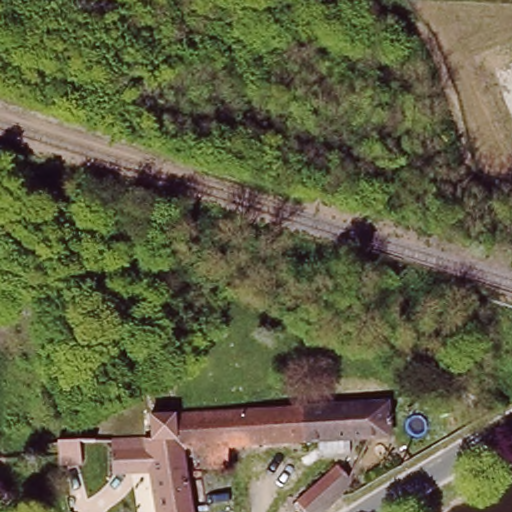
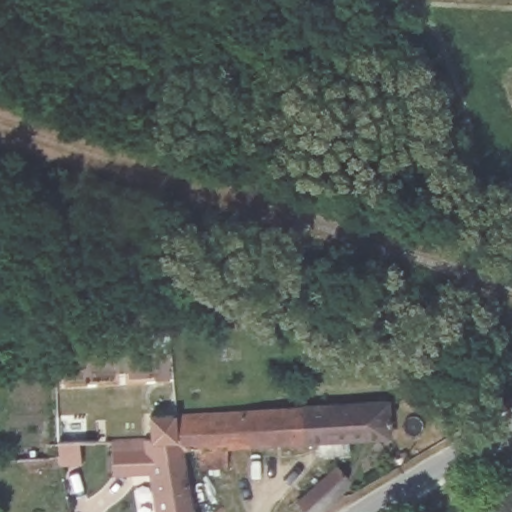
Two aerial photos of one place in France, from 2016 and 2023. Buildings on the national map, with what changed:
unchanged [(228,441),(180,442),(176,443),(172,413),(172,409),(385,396),(387,431),(367,432),(228,441)]
unchanged [(172,409),(172,413),(176,443),(180,442),(183,463),(192,512),(162,512),(155,464),(148,431),(147,411),(172,409)]
unchanged [(155,464),(114,467),(109,433),(148,431),(155,464)]
unchanged [(55,439),(78,438),(78,466),(57,469),(55,439)]
unchanged [(230,461),(183,463),(180,442),(228,441),(230,461)]
unchanged [(317,512),(293,512),(305,504),(300,497),(339,461),(353,473),(350,479),(328,505),(317,512)]

